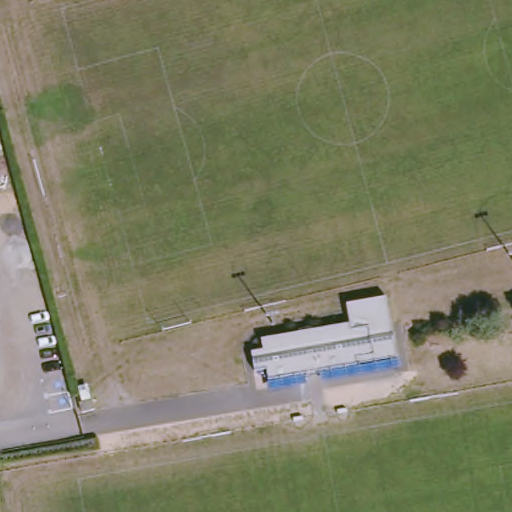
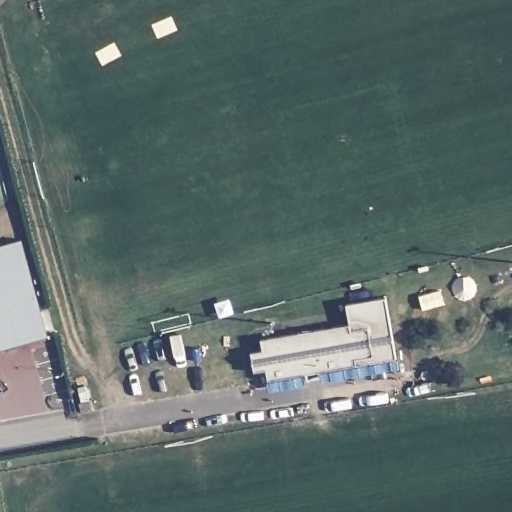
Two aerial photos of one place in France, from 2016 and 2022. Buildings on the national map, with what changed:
new [(49,334),(0,348),(0,245),(22,239),(49,334)]
unchanged [(272,380),(270,368),(258,371),(255,353),(267,350),(265,338),(352,324),(349,304),(389,296),(400,357),(272,380)]
unchanged [(72,401),(69,391),(80,389),(82,399),(72,401)]

